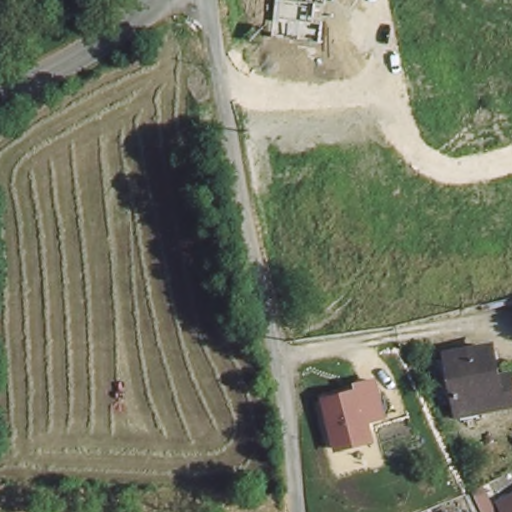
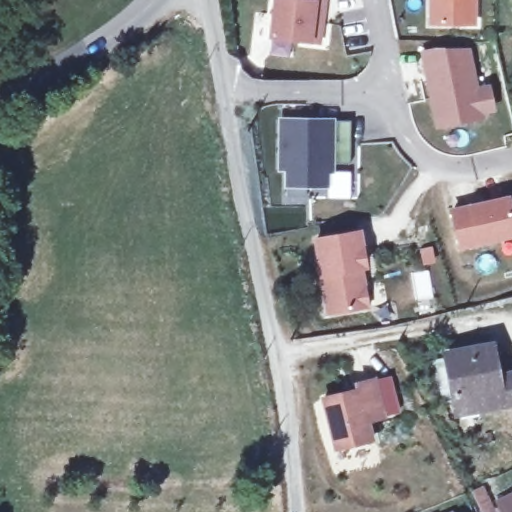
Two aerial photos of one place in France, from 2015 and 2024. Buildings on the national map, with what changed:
new [(320,38),(272,31),(276,0),(325,0),(322,18),(320,38)]
unchanged [(468,20),(433,19),(433,0),(475,0),(475,20),(468,20)]
new [(493,106),(480,108),(482,114),(443,121),(440,106),(435,107),(425,49),(437,46),(469,47),(477,87),(489,85),(493,106)]
new [(281,115),(351,116),(350,159),(332,159),(332,167),(328,166),(327,181),(307,181),(306,192),(287,191),(287,164),(280,163),(281,115)]
new [(507,196),(512,216),(512,232),(460,244),(452,208),(507,196)]
new [(362,228),(370,269),(363,271),(371,309),(325,316),(313,237),(362,228)]
unchanged [(498,371),(512,370),(512,373),(512,399),(460,407),(449,350),(493,342),(498,371)]
unchanged [(455,395),(440,398),(431,361),(445,358),(455,395)]
unchanged [(389,418),(371,423),(376,441),(335,453),(320,398),(355,388),(353,383),(379,376),(389,418)]
unchanged [(503,512),(496,494),(512,488),(512,512),(503,512)]

